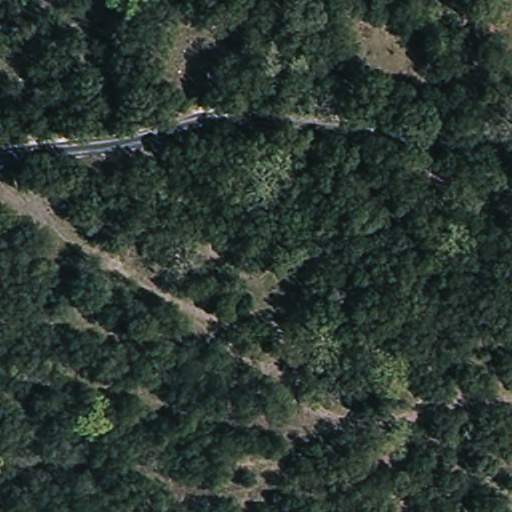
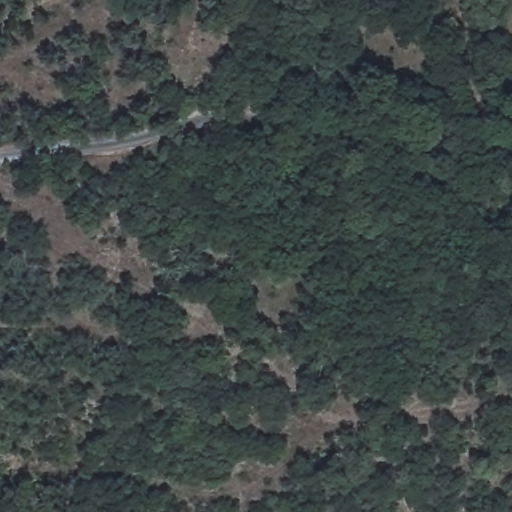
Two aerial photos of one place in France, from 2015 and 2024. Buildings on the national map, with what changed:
[]

